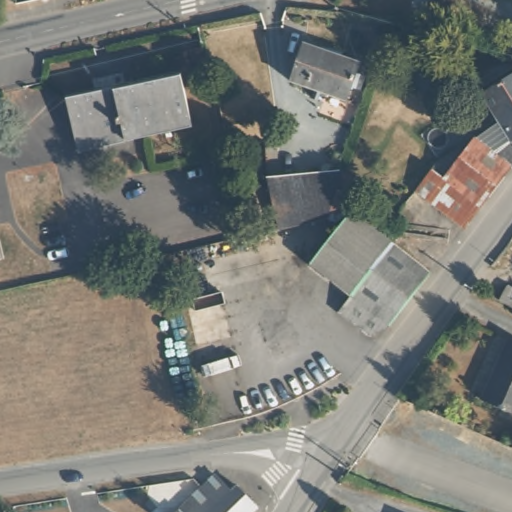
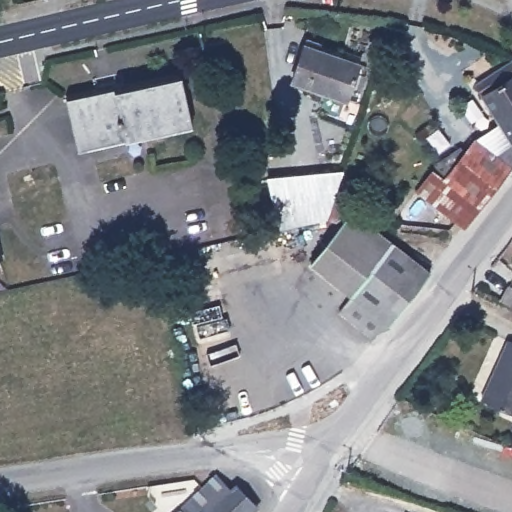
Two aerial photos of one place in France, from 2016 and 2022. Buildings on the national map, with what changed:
unchanged [(295,72),(306,38),(358,55),(346,91),(295,72)]
unchanged [(488,52),(482,73),(453,63),(460,42),(488,52)]
unchanged [(497,117),(478,83),(512,63),(512,107),(497,117)]
unchanged [(64,86),(97,80),(98,85),(179,69),(190,119),(75,142),(64,86)]
unchanged [(500,122),(497,117),(512,107),(512,167),(472,220),(462,213),(424,183),(436,165),(445,152),(468,136),(473,141),(500,122)]
unchanged [(337,171),(321,224),(294,230),(275,235),(265,183),(282,179),(283,182),(337,171)]
unchanged [(359,211),(366,220),(431,272),(393,322),(374,334),(343,310),(355,294),(324,268),(318,263),(338,238),(359,211)]
unchanged [(507,283),(512,285),(512,307),(499,300),(507,283)]
unchanged [(481,394),(509,335),(512,337),(512,409),(481,394)]
unchanged [(245,477),(262,497),(246,512),(198,512),(186,500),(224,468),(238,482),(245,477)]
unchanged [(198,512),(172,512),(186,500),(198,512)]

